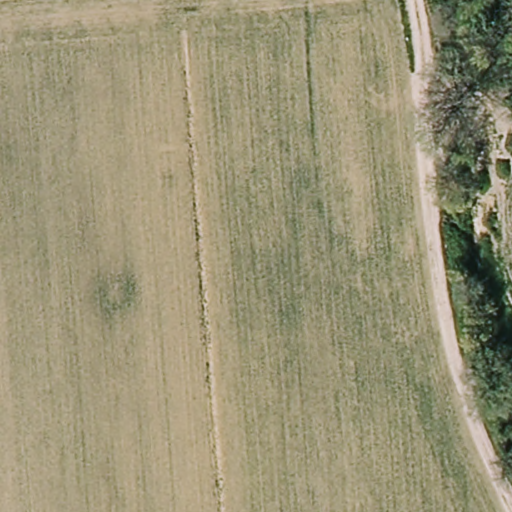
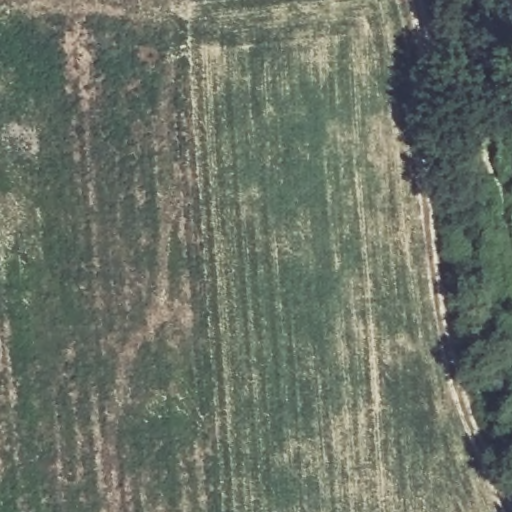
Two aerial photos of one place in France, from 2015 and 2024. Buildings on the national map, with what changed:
[]

